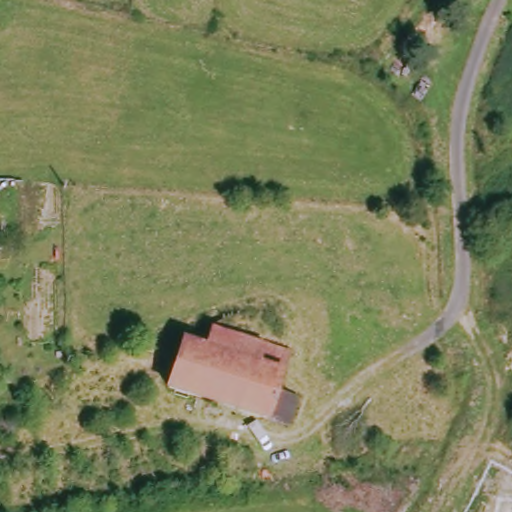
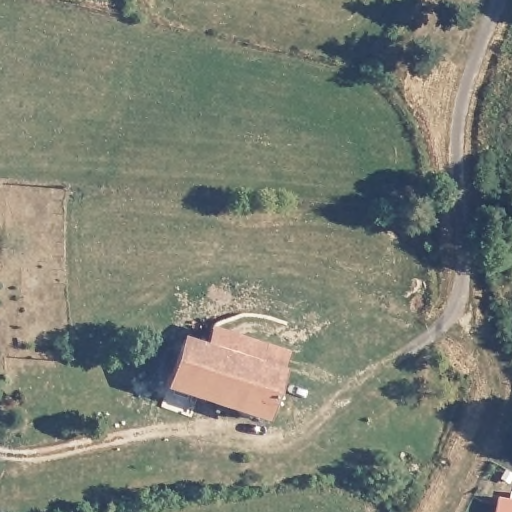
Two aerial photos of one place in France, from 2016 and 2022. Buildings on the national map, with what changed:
unchanged [(415,66),(423,66),(437,27),(465,43),(442,83),(428,75),(423,89),(409,84),(415,66)]
unchanged [(299,396),(290,426),(169,390),(184,342),(207,348),(212,331),(262,345),(287,352),(282,371),(277,390),(299,396)]
new [(512,500),(512,512),(495,512),(498,496),(512,500)]

